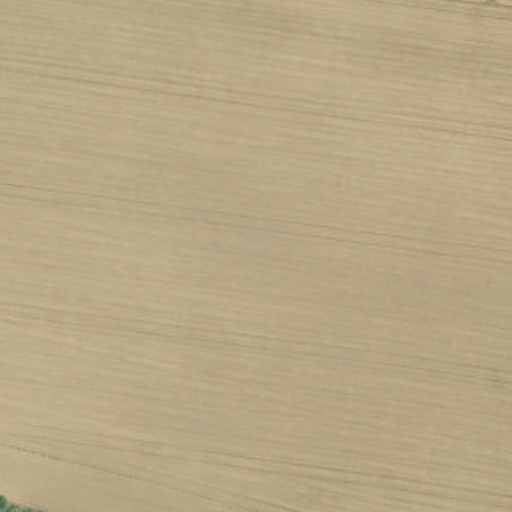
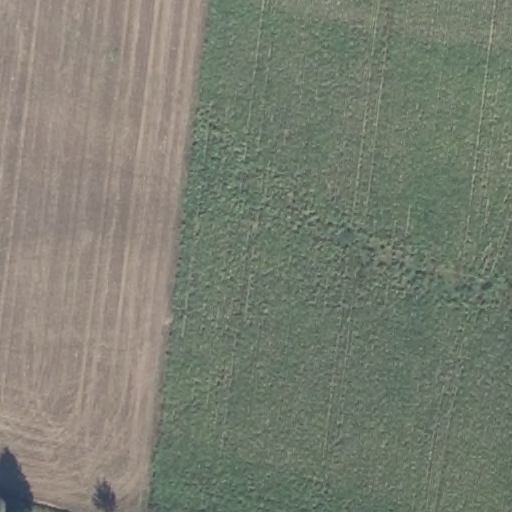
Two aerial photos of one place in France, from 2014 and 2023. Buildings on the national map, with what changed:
[]

